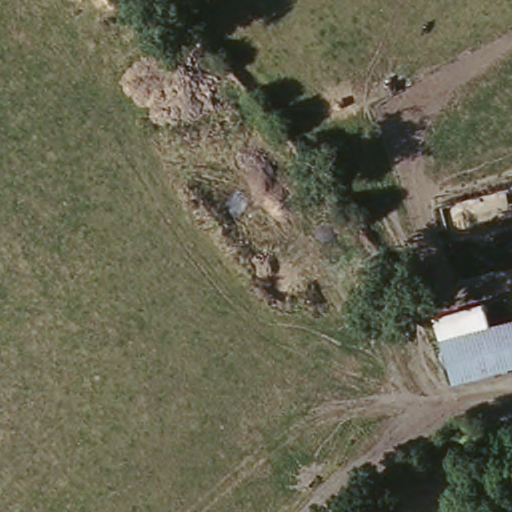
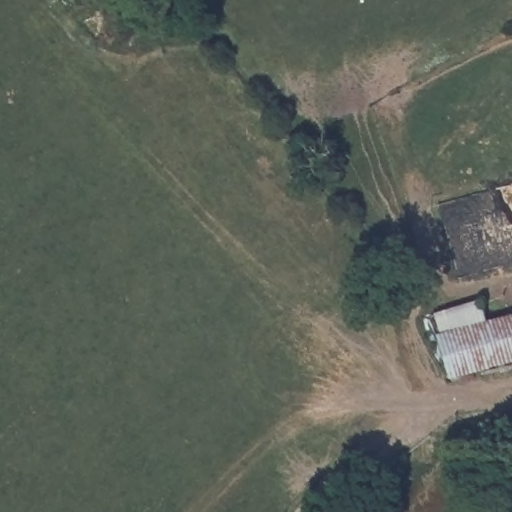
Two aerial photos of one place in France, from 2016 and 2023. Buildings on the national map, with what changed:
unchanged [(488,330),(508,325),(512,343),(512,360),(447,377),(431,315),(481,303),(488,330)]

